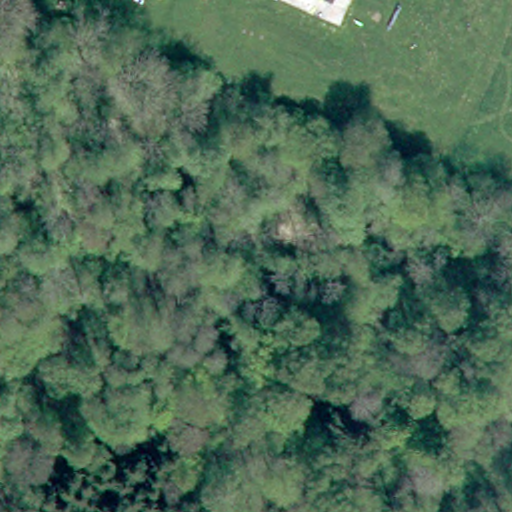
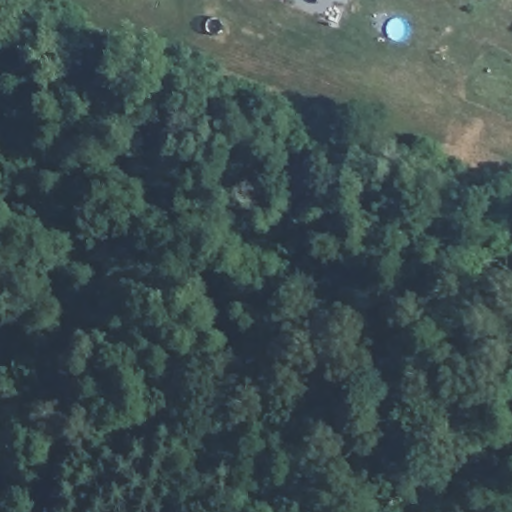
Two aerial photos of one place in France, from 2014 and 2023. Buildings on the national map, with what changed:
unchanged [(332,2),(327,0),(332,0),(332,2)]

